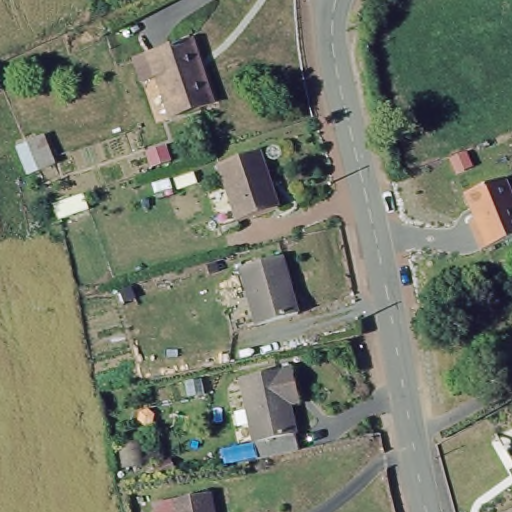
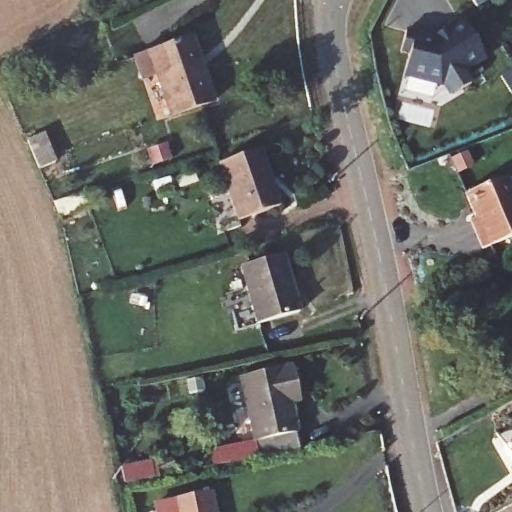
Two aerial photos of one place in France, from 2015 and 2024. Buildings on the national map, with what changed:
new [(471,0),(490,0),(476,9),(471,0)]
new [(402,79),(410,45),(402,43),(405,31),(431,38),(443,34),(439,28),(457,17),(484,62),(465,74),(470,83),(447,96),(442,89),(402,79)]
unchanged [(195,35),(217,103),(172,119),(155,77),(142,81),(133,57),(195,35)]
unchanged [(30,135),(43,164),(27,172),(13,144),(30,135)]
unchanged [(254,150),(275,203),(237,217),(217,163),(254,150)]
unchanged [(512,238),(488,249),(481,253),(467,221),(474,218),(463,194),(506,178),(512,192),(512,238)]
unchanged [(280,253),(301,306),(260,322),(240,269),(280,253)]
unchanged [(285,366),(292,393),(283,395),(298,448),(255,458),(235,380),(285,366)]
unchanged [(512,440),(512,471),(499,448),(512,440)]
unchanged [(512,471),(512,478),(508,473),(512,471)]
unchanged [(203,490),(208,512),(166,512),(163,499),(203,490)]

